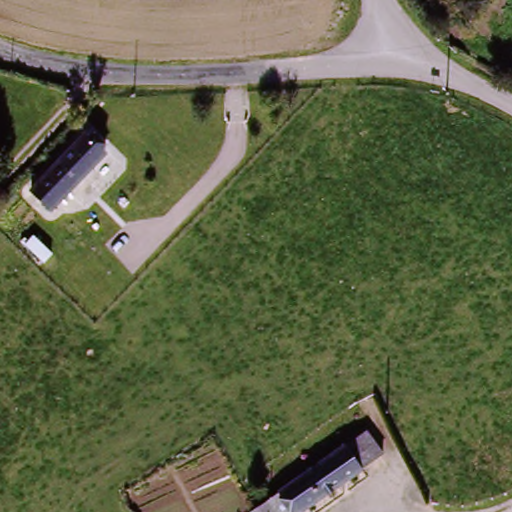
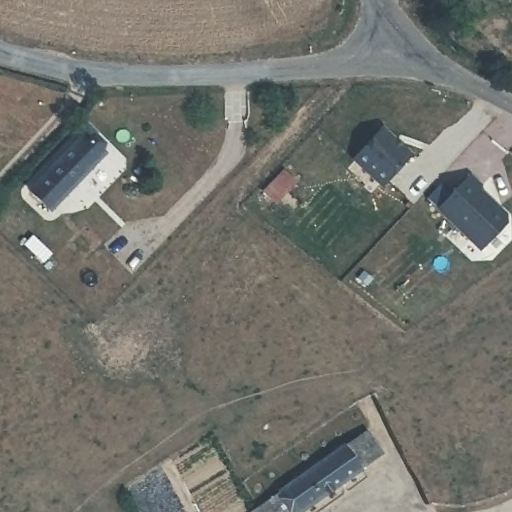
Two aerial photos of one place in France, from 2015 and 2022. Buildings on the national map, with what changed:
new [(416,155),(386,189),(352,160),(382,125),(416,155)]
unchanged [(56,213),(33,195),(83,131),(106,149),(56,213)]
new [(482,184),(480,186),(509,216),(481,252),(436,209),(471,173),(482,184)]
unchanged [(285,488),(348,445),(363,465),(301,510),(285,488)]
unchanged [(301,510),(297,512),(253,512),(252,511),(285,488),(301,510)]

